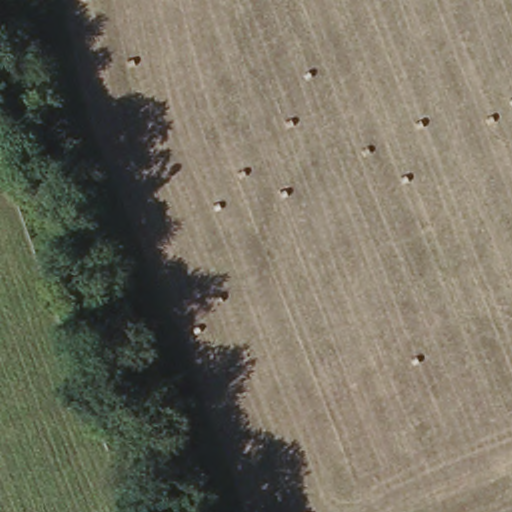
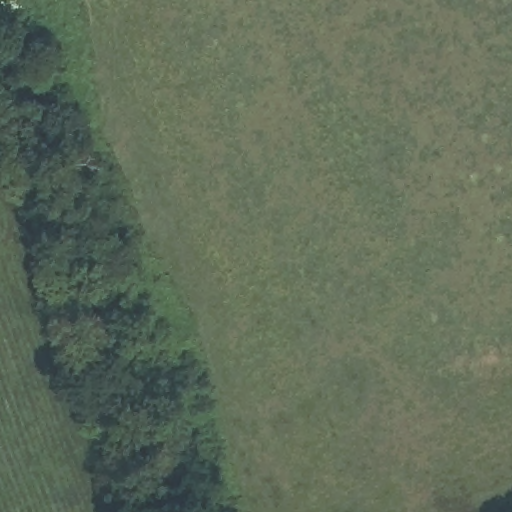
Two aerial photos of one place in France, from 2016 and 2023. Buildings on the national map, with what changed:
[]

